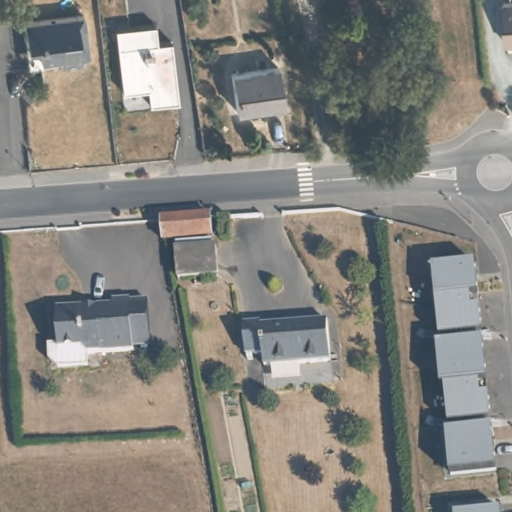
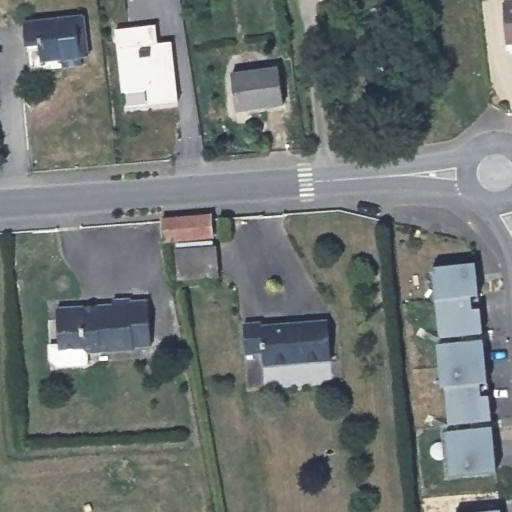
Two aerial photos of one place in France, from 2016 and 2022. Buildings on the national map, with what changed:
unchanged [(505,5),(512,4),(512,45),(510,45),(505,5)]
unchanged [(81,53),(81,61),(61,62),(60,54),(40,56),(38,39),(26,40),(24,17),(84,11),(87,53),(81,53)]
unchanged [(114,30),(156,25),(158,44),(172,42),(179,103),(149,106),(147,93),(121,94),(114,30)]
unchanged [(253,121),(252,114),(241,116),(234,77),(282,70),(287,109),(270,111),(271,119),(253,121)]
unchanged [(212,214),(214,237),(167,246),(166,240),(162,216),(212,214)]
unchanged [(219,277),(180,279),(177,249),(217,247),(219,277)]
unchanged [(475,263),(498,473),(453,478),(430,265),(475,263)]
unchanged [(57,303),(81,301),(82,307),(97,306),(97,300),(114,299),(113,294),(131,292),(131,295),(147,294),(151,342),(134,343),(134,345),(87,348),(88,361),(58,363),(50,356),(49,340),(59,339),(57,303)]
unchanged [(333,360),(268,367),(267,354),(249,356),(246,325),(263,323),(264,325),(328,319),(333,360)]
unchanged [(474,502),(498,499),(499,512),(460,512),(475,508),(474,502)]

